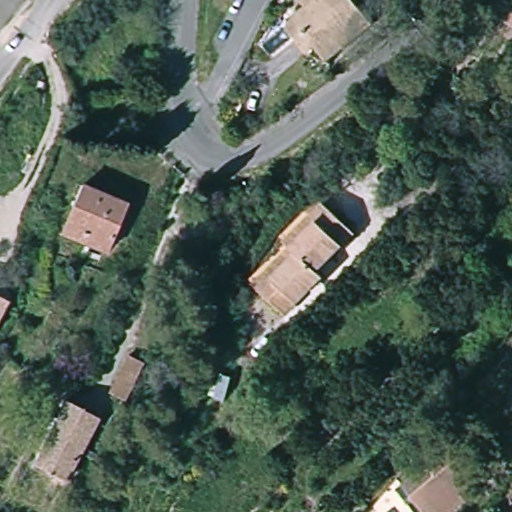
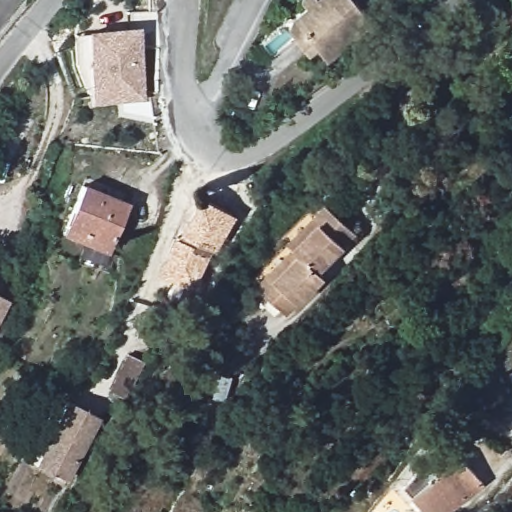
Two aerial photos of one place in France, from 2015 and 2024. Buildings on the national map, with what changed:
unchanged [(292,20),(305,6),(298,0),(353,0),(374,24),(331,61),(320,49),(311,55),(300,43),(288,31),(292,20)]
unchanged [(509,0),(512,0),(512,27),(499,21),(509,0)]
new [(90,104),(89,89),(76,64),(74,33),(87,32),(87,30),(139,26),(143,96),(90,104)]
new [(215,252),(213,251),(195,290),(158,273),(175,232),(180,235),(202,197),(236,215),(215,252)]
unchanged [(71,237),(88,200),(127,219),(111,255),(71,237)]
unchanged [(314,278),(282,316),(252,288),(283,251),(279,247),(315,206),(345,233),(309,274),(314,278)]
new [(77,262),(84,243),(107,253),(99,271),(77,262)]
unchanged [(8,302),(0,318),(0,298),(8,302)]
unchanged [(153,374),(132,416),(114,406),(135,365),(153,374)]
unchanged [(227,402),(209,398),(217,371),(234,373),(227,402)]
unchanged [(100,417),(77,471),(42,455),(66,401),(100,417)]
unchanged [(441,475),(434,467),(457,450),(484,485),(450,512),(430,512),(417,495),(441,475)]

